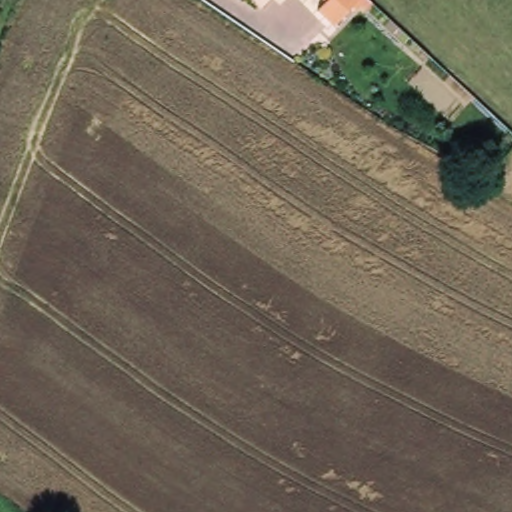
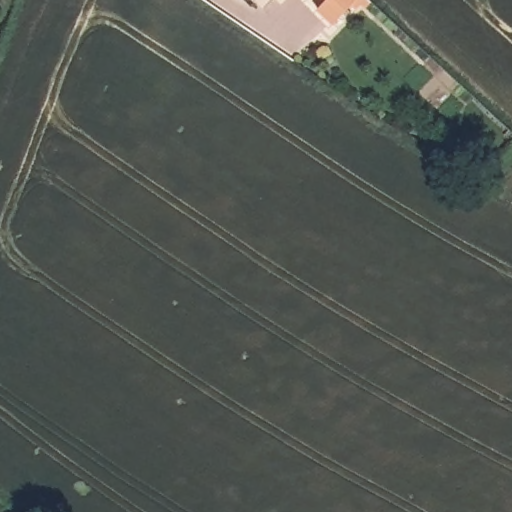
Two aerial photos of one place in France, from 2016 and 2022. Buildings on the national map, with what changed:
unchanged [(331,1),(329,0),(331,0),(331,1)]

